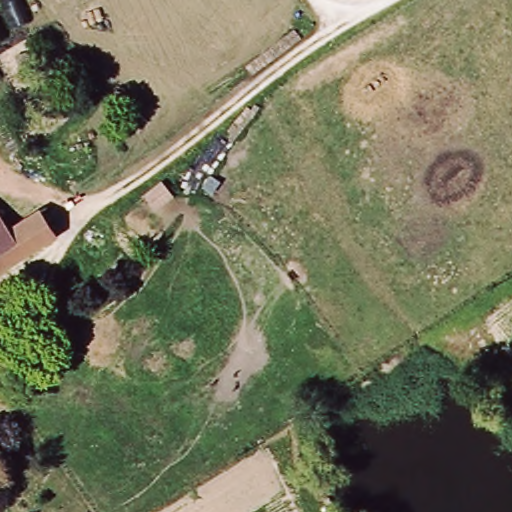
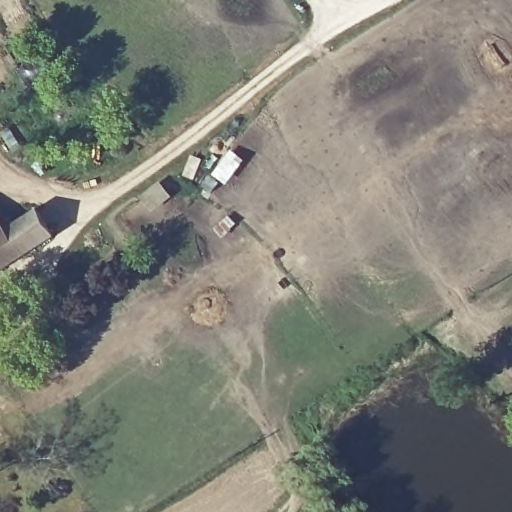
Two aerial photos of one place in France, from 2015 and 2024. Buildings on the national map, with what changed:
unchanged [(38,213),(53,238),(0,273),(0,237),(5,234),(38,213)]
unchanged [(0,237),(0,226),(5,234),(0,237)]

